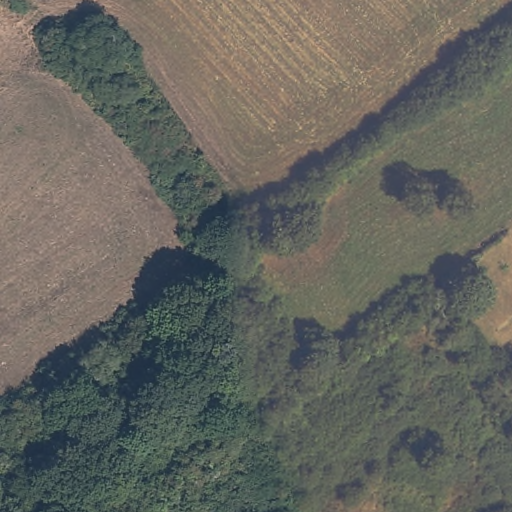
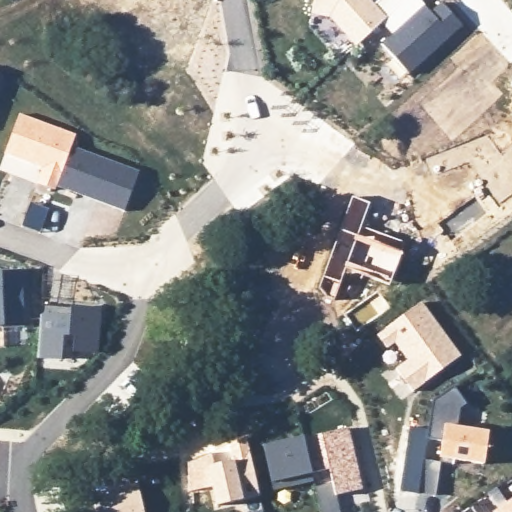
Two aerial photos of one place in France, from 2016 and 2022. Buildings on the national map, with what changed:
new [(374,0),(376,3),(380,0),(420,0),(431,12),(441,3),(463,27),(409,76),(382,47),(393,35),(382,23),(355,48),(330,18),(312,16),(315,0),(374,0)]
new [(18,115),(76,135),(72,149),(57,188),(56,193),(37,187),(42,169),(3,156),(18,115)]
new [(72,149),(139,174),(125,213),(57,188),(72,149)]
new [(21,271),(25,328),(3,330),(3,328),(0,328),(0,272),(21,271)]
new [(421,302),(461,356),(411,394),(395,370),(406,361),(395,345),(386,352),(375,336),(421,302)]
new [(42,307),(100,312),(97,354),(95,355),(75,354),(76,338),(63,337),(61,361),(38,360),(42,307)]
new [(436,401),(457,386),(470,404),(464,409),(461,428),(492,432),(488,464),(444,458),(446,442),(430,439),(436,401)]
new [(364,490),(335,497),(340,512),(320,512),(315,488),(332,483),(329,471),(312,473),(304,439),(349,429),(364,490)]
new [(304,439),(313,477),(303,479),(305,486),(275,493),(265,448),(304,439)]
new [(234,464),(232,458),(250,453),(261,499),(218,508),(209,469),(234,464)]
new [(139,485),(146,512),(97,512),(93,496),(139,485)]
new [(512,512),(500,512),(512,503),(512,512)]

